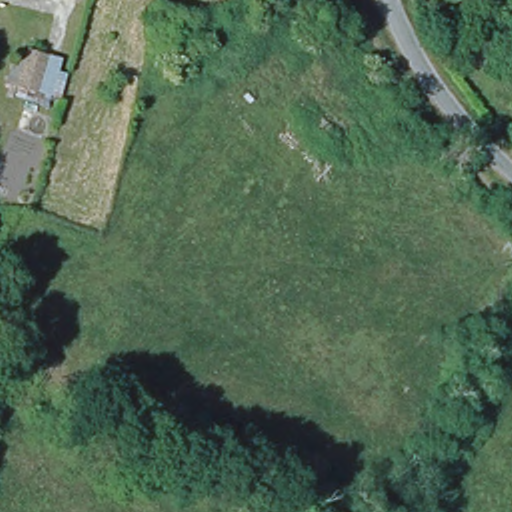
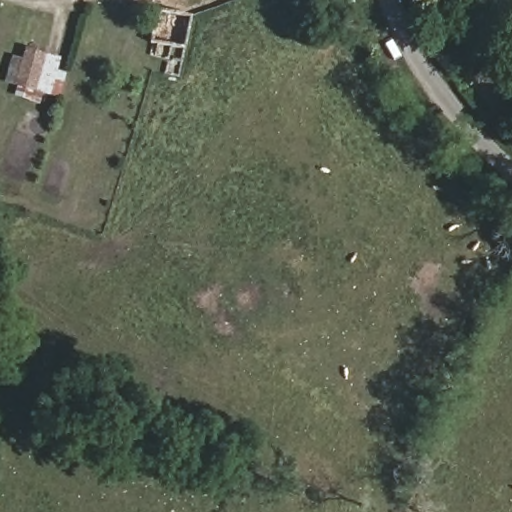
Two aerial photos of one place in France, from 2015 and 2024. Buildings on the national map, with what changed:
unchanged [(180,65),(151,56),(157,40),(148,38),(158,7),(192,17),(180,65)]
unchanged [(11,61),(20,62),(24,50),(56,60),(53,72),(64,76),(58,99),(4,87),(11,61)]

